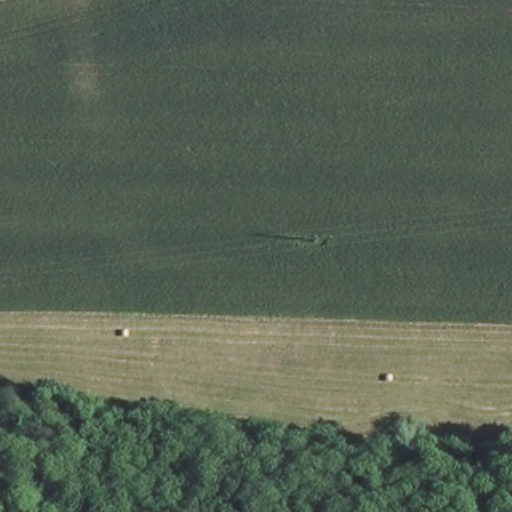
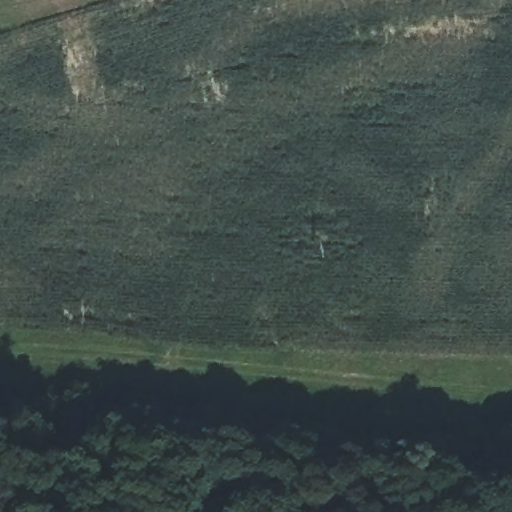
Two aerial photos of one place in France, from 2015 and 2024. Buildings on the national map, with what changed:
[]

